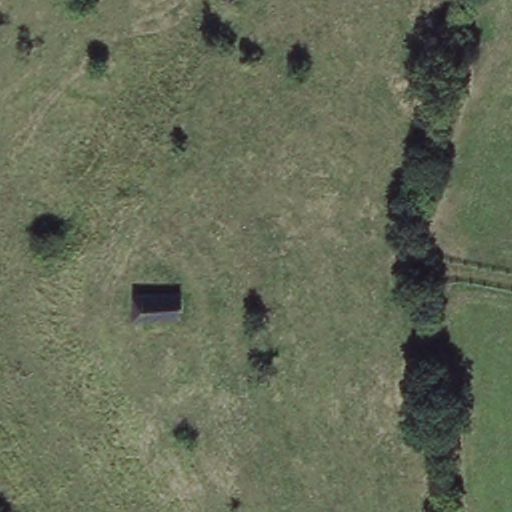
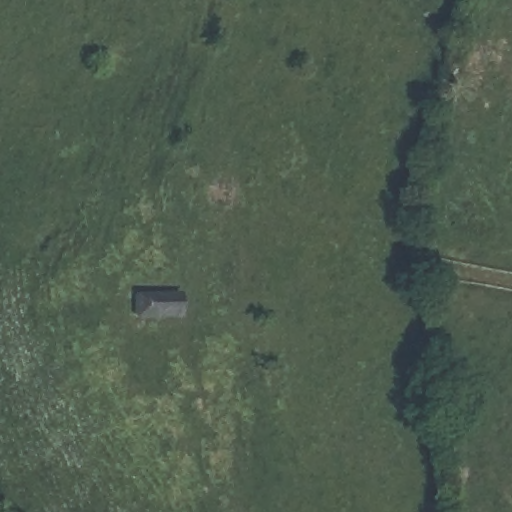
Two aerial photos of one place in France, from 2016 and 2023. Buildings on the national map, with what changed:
unchanged [(133,291),(179,294),(177,314),(133,312),(133,291)]

